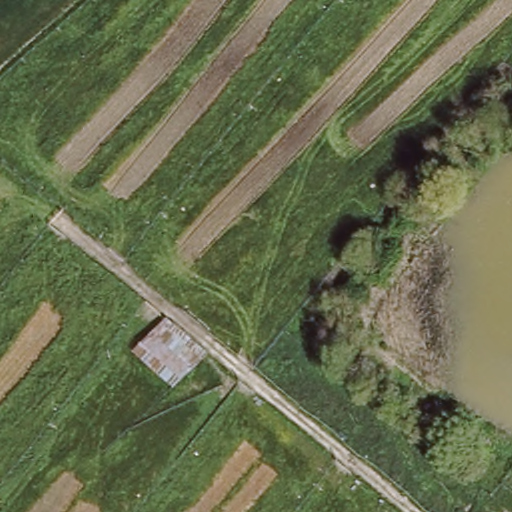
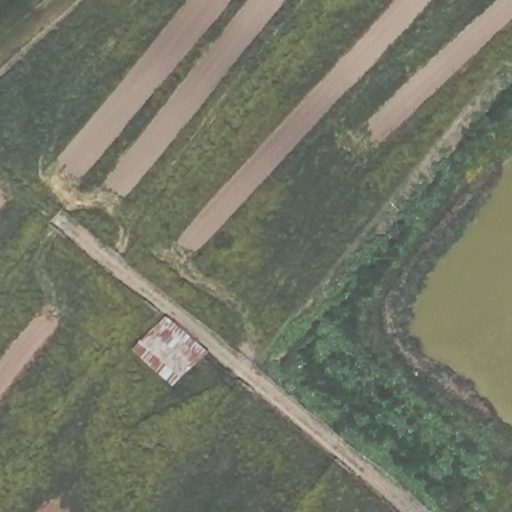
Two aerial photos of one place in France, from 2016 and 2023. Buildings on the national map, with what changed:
unchanged [(170,315),(182,303),(208,322),(195,338),(206,347),(170,381),(128,345),(165,311),(170,315)]

